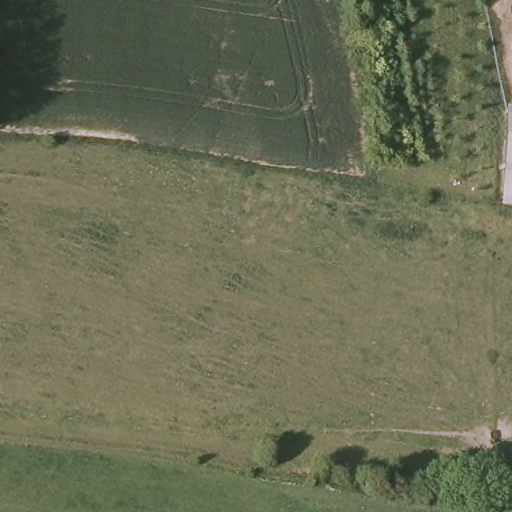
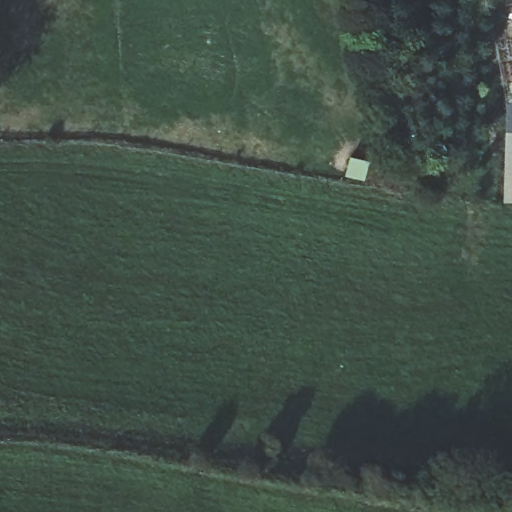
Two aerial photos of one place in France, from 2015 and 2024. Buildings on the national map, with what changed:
unchanged [(502,206),(507,107),(512,108),(512,206),(502,206)]

